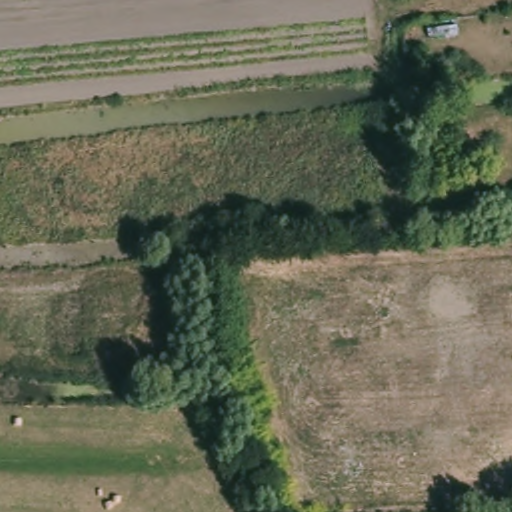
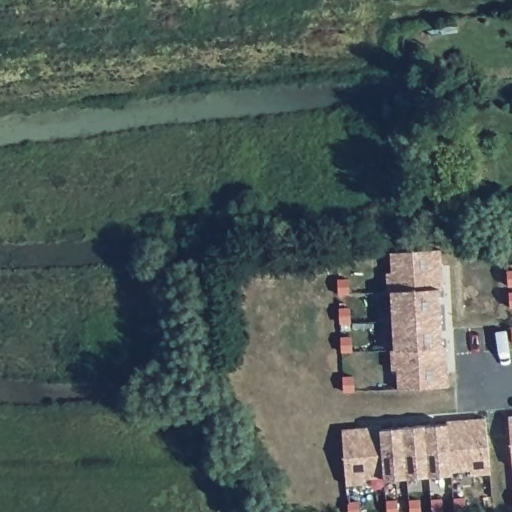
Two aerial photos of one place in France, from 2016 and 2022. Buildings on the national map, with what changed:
new [(447,386),(397,388),(396,369),(391,369),(390,349),(393,349),(390,291),(386,291),(385,272),(390,271),(390,252),(440,249),(442,287),(439,287),(441,348),(444,348),(447,386)]
new [(512,416),(512,460),(508,416),(512,416)]
new [(470,470),(451,471),(451,474),(384,478),(384,477),(364,478),(364,483),(345,485),(341,429),(380,426),(380,429),(448,424),(448,420),(486,417),(491,472),(471,474),(470,470)]

